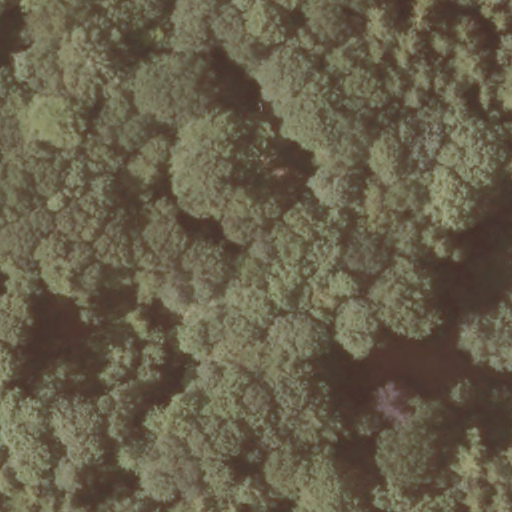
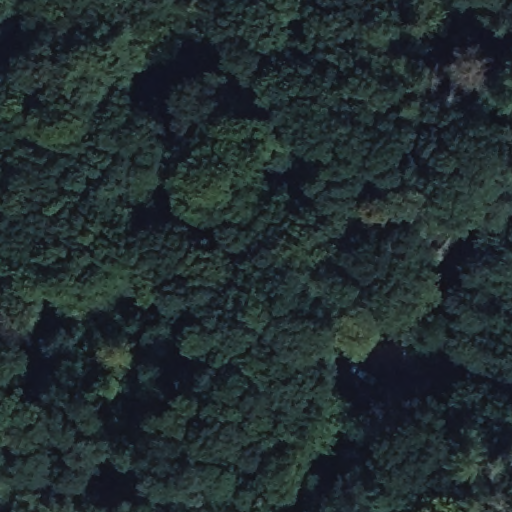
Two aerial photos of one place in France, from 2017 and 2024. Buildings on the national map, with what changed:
unchanged [(350,342),(372,347),(366,377),(343,373),(350,342)]

